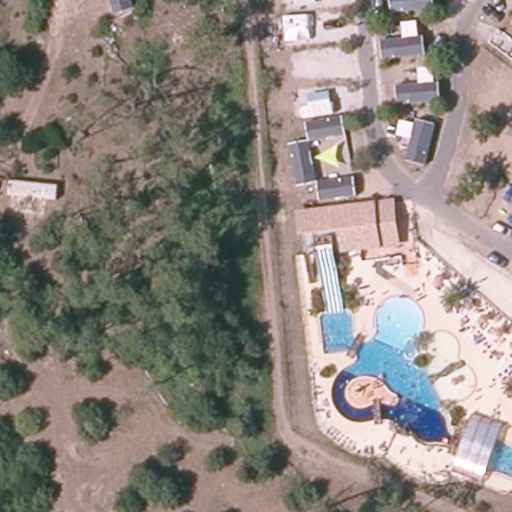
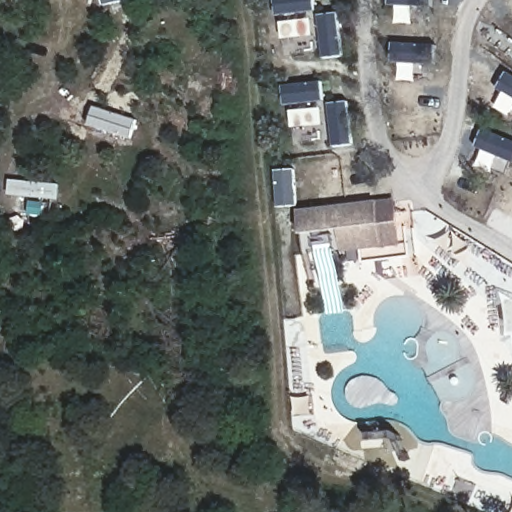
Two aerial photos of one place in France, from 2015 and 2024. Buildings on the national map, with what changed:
unchanged [(400,200),(405,246),(310,257),(304,212),(400,200)]

